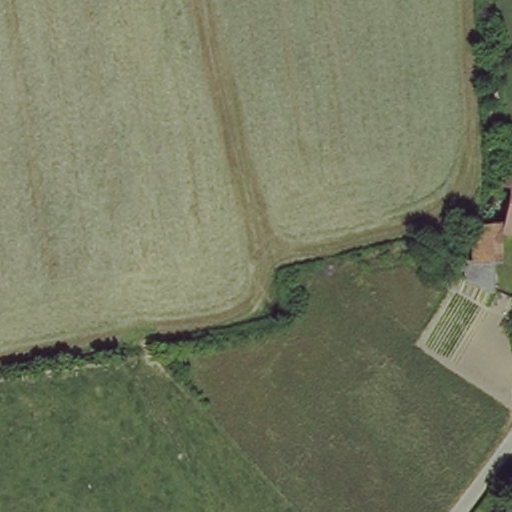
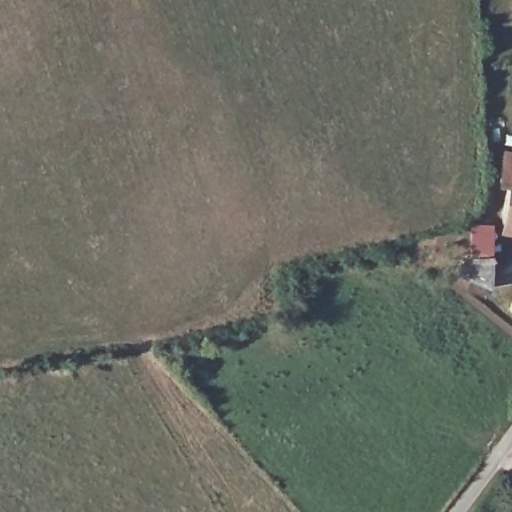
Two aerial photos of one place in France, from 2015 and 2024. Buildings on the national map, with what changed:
unchanged [(512,154),(512,180),(506,180),(507,153),(512,154)]
unchanged [(510,226),(512,197),(512,226),(510,226)]
unchanged [(495,288),(461,278),(462,262),(474,262),(473,234),(494,236),(495,288)]

